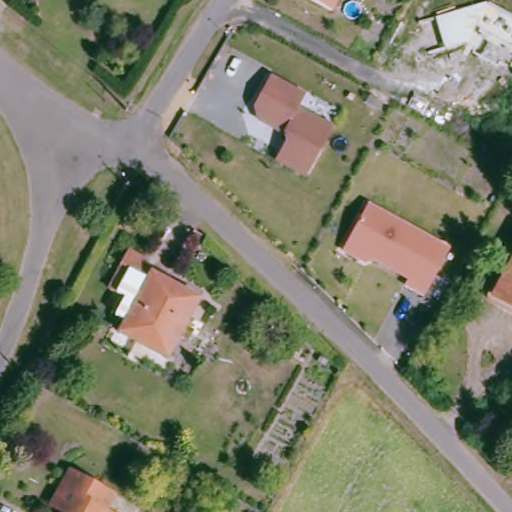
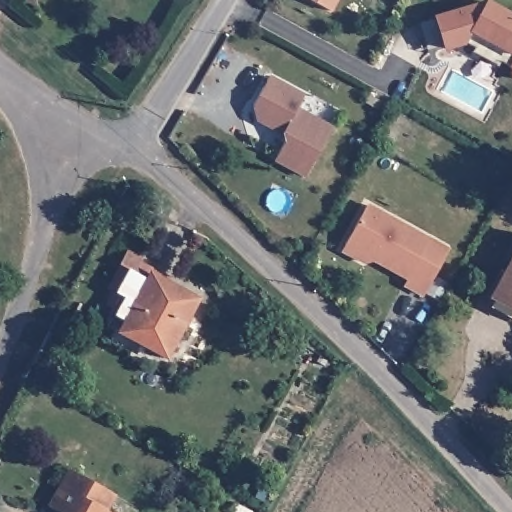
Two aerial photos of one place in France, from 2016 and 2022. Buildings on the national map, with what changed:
unchanged [(309,0),(336,0),(330,11),(309,0)]
new [(446,49),(436,17),(486,2),(512,15),(512,66),(502,60),(500,65),(475,52),(477,47),(466,42),(446,49)]
unchanged [(305,96),(298,110),(333,129),(307,177),(276,160),(286,141),(285,135),(260,121),(256,106),(271,77),(305,96)]
unchanged [(445,257),(420,301),(401,290),(405,284),(371,263),(361,265),(341,252),(345,246),(365,212),(445,257)]
unchanged [(140,257),(133,268),(145,275),(147,273),(196,300),(165,361),(114,333),(131,302),(107,289),(118,268),(117,265),(125,250),(140,257)]
unchanged [(512,260),(512,312),(490,299),(512,260)]
unchanged [(61,503),(46,495),(64,466),(107,490),(101,501),(111,507),(108,512),(56,512),(61,503)]

